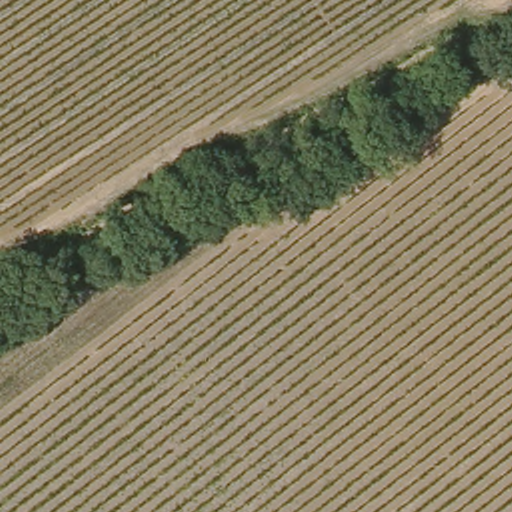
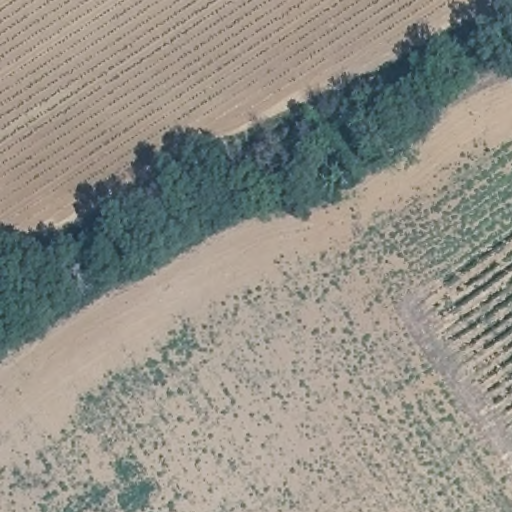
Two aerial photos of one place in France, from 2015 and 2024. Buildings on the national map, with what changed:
[]

